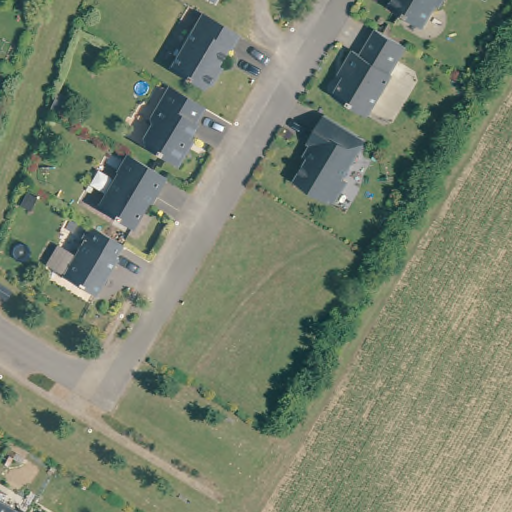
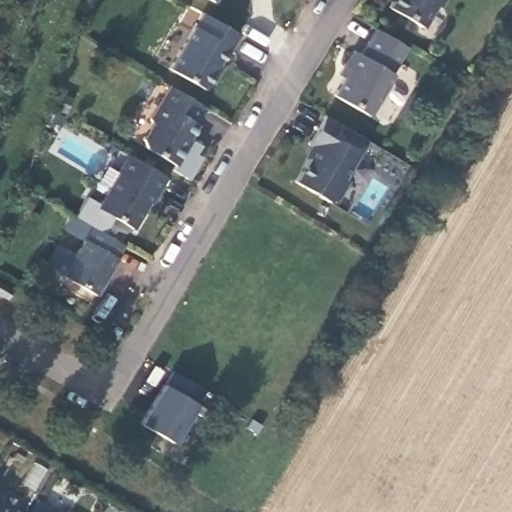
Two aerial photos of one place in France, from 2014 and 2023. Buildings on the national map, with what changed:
unchanged [(443,6),(436,2),(424,24),(393,5),(395,0),(446,0),(443,6)]
unchanged [(231,52),(229,51),(216,74),(217,81),(212,89),(206,89),(204,91),(171,71),(188,39),(190,40),(203,16),(239,38),(231,52)]
unchanged [(387,68),(388,71),(369,107),(359,110),(329,93),(343,68),(337,65),(347,47),(355,50),(369,25),(375,28),(400,43),(387,68)]
unchanged [(194,132),(189,135),(190,142),(176,168),(144,148),(143,136),(151,127),(151,117),(169,86),(206,108),(194,132)]
unchanged [(351,145),(358,149),(344,174),(347,177),(334,199),(296,177),(317,143),(309,139),(325,112),(358,131),(351,145)]
unchanged [(153,195),(134,229),(98,210),(113,182),(115,182),(120,173),(117,171),(127,153),(133,156),(168,177),(157,196),(153,195)]
unchanged [(116,259),(117,260),(95,298),(63,279),(85,242),(82,241),(92,226),(124,245),(116,259)]
new [(173,443),(139,423),(163,383),(171,370),(204,390),(196,403),(173,443)]
unchanged [(12,504),(7,512),(0,512),(0,497),(12,504)]

